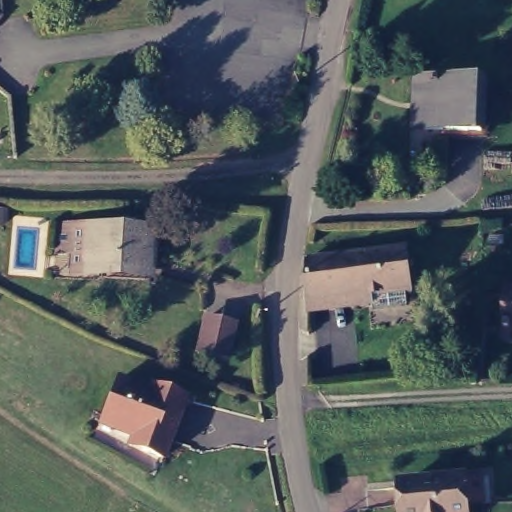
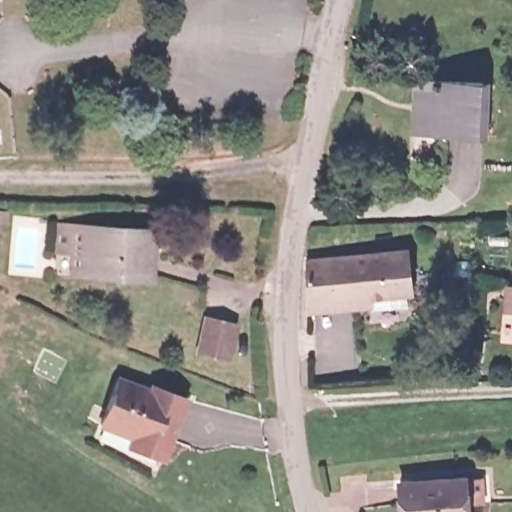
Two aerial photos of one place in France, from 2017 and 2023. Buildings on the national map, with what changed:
unchanged [(478,123),(420,121),(421,94),(412,94),(413,71),(480,73),(478,123)]
unchanged [(2,225),(0,224),(0,211),(2,212),(2,225)]
unchanged [(57,251),(59,222),(68,223),(68,229),(120,232),(121,223),(134,224),(133,233),(148,234),(146,275),(73,270),(73,252),(57,251)]
unchanged [(308,308),(307,298),(307,256),(407,245),(412,287),(406,287),(408,301),(373,305),(373,302),(308,310),(308,308)]
unchanged [(510,325),(505,325),(506,321),(509,284),(512,284),(512,322),(511,322),(510,325)]
unchanged [(235,325),(227,360),(198,352),(206,318),(235,325)]
unchanged [(152,382),(185,395),(175,421),(172,420),(167,431),(171,432),(162,455),(130,442),(133,433),(101,421),(118,375),(151,387),(152,382)]
unchanged [(470,512),(402,512),(399,481),(433,478),(432,475),(466,472),(470,512)]

